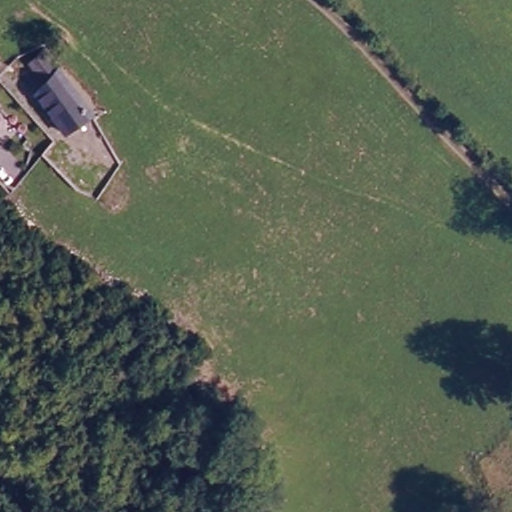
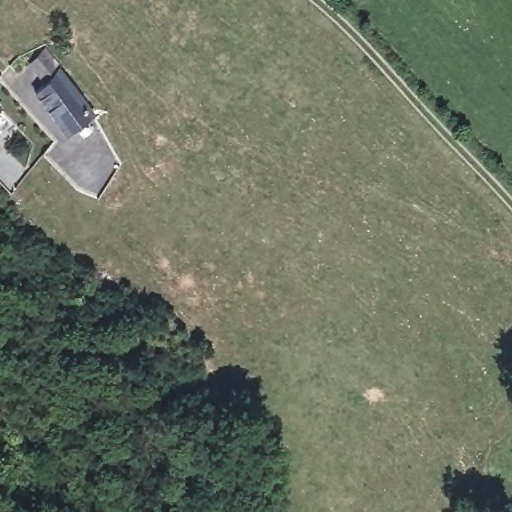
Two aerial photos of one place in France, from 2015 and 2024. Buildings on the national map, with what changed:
unchanged [(41,58),(45,64),(57,51),(66,65),(63,68),(95,114),(70,134),(40,94),(51,86),(35,65),(41,58)]
unchanged [(2,102),(0,104),(0,99),(2,102)]

